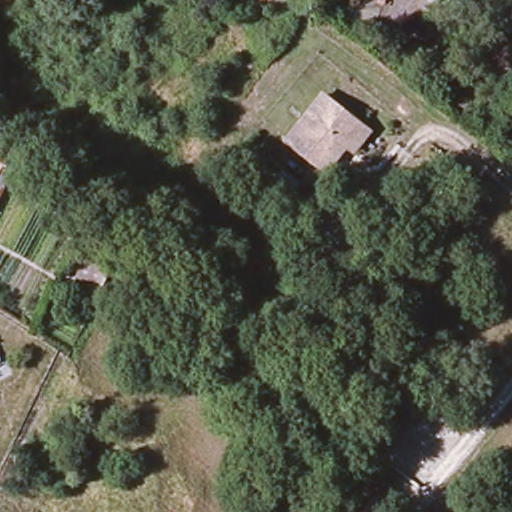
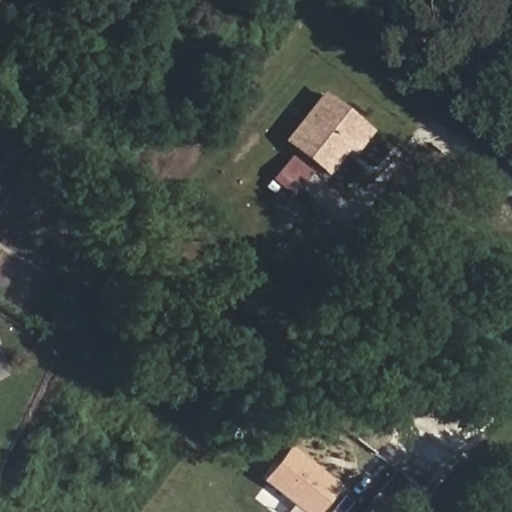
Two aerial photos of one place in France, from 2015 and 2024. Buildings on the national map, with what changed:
unchanged [(348,152),(343,148),(332,140),(328,145),(332,148),(315,169),(282,143),(319,96),(358,128),(364,132),(348,152)]
new [(338,485),(319,512),(304,512),(264,482),(289,449),(338,485)]
unchanged [(382,512),(379,512),(381,510),(382,512)]

